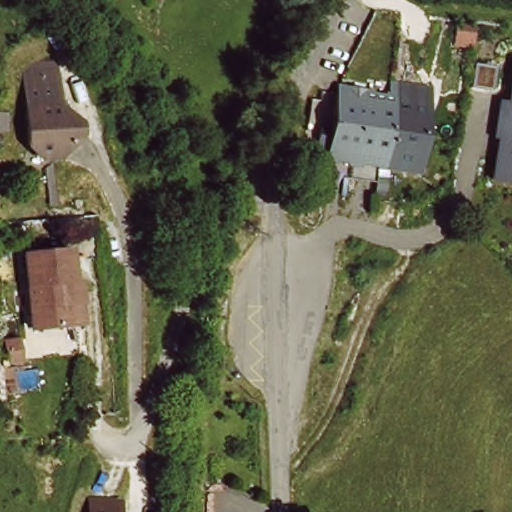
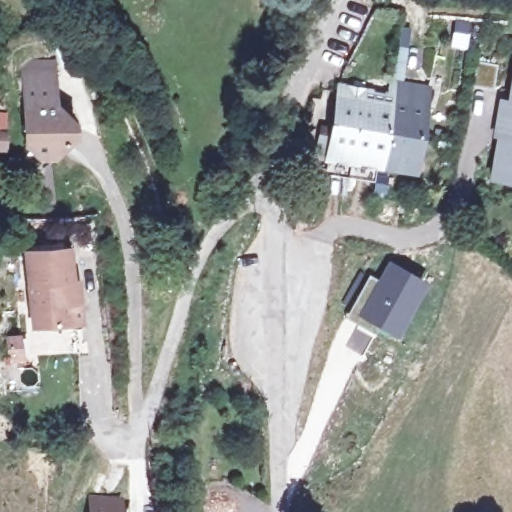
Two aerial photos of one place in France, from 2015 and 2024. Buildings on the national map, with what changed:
unchanged [(42,166),(25,151),(25,116),(23,77),(30,67),(54,67),(54,76),(55,115),(80,136),(53,165),(48,171),(42,166)]
unchanged [(326,155),(313,154),(316,137),(328,138),(340,72),(351,73),(349,87),(391,93),(395,79),(429,84),(417,173),(325,162),(326,155)]
unchanged [(503,104),(512,105),(512,123),(500,121),(503,104)]
unchanged [(512,123),(512,184),(493,180),(499,146),(504,148),(505,139),(497,138),(500,121),(512,123)]
unchanged [(41,179),(48,171),(52,208),(45,210),(41,179)]
unchanged [(31,251),(73,246),(76,282),(68,283),(71,322),(38,327),(31,251)]
new [(355,322),(345,316),(367,273),(376,277),(387,258),(426,280),(393,336),(378,328),(363,355),(343,345),(355,322)]
unchanged [(123,498),(123,512),(96,512),(96,497),(123,498)]

